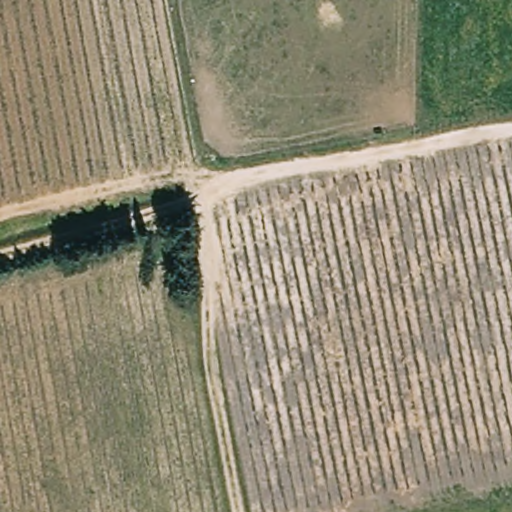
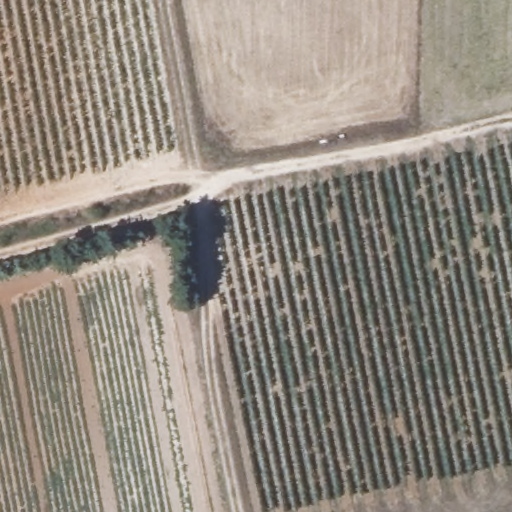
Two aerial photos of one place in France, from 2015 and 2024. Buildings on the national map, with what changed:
[]

